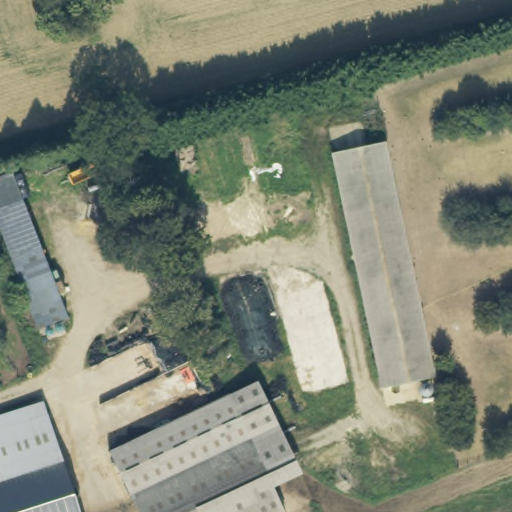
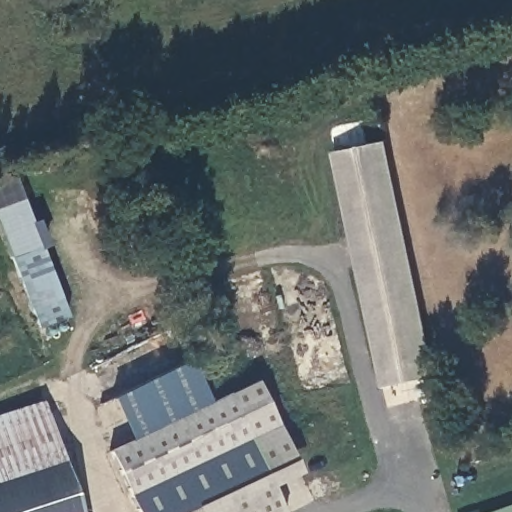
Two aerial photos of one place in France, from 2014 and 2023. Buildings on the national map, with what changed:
unchanged [(338,150),(391,140),(435,375),(383,385),(338,150)]
unchanged [(0,178),(16,172),(41,240),(11,250),(0,221),(0,178)]
unchanged [(67,313),(37,324),(11,250),(41,240),(67,313)]
new [(112,398),(192,359),(212,403),(131,440),(112,398)]
unchanged [(259,381),(296,461),(268,475),(284,512),(138,512),(110,450),(259,381)]
unchanged [(61,465),(0,482),(0,417),(45,404),(61,465)]
unchanged [(74,512),(0,512),(0,482),(61,465),(74,512)]
new [(496,512),(512,506),(512,512),(496,512)]

